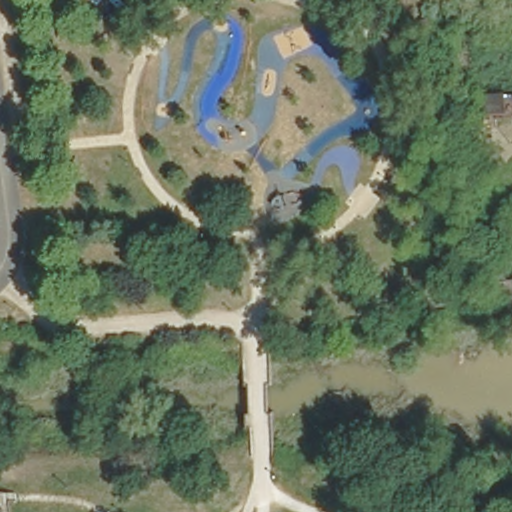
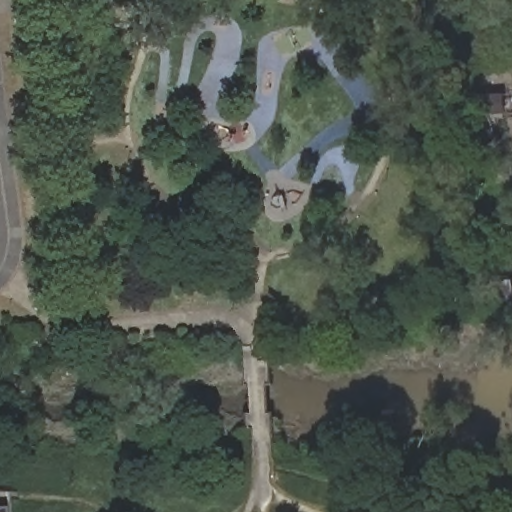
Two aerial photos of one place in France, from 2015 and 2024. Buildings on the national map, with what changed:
unchanged [(509,110),(508,124),(496,123),(497,109),(509,110)]
unchanged [(498,315),(485,318),(481,300),(495,297),(498,315)]
unchanged [(0,506),(1,506),(2,512),(0,512),(0,506)]

